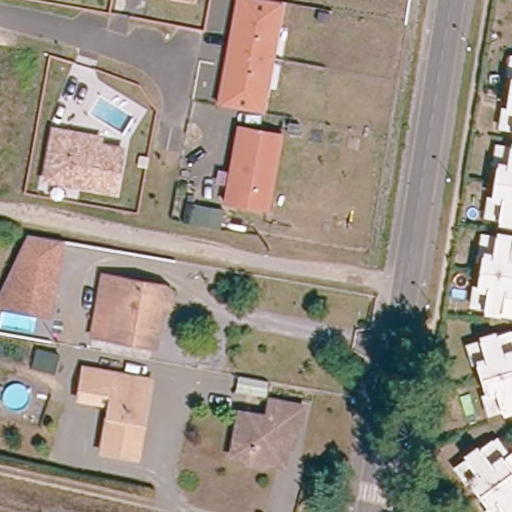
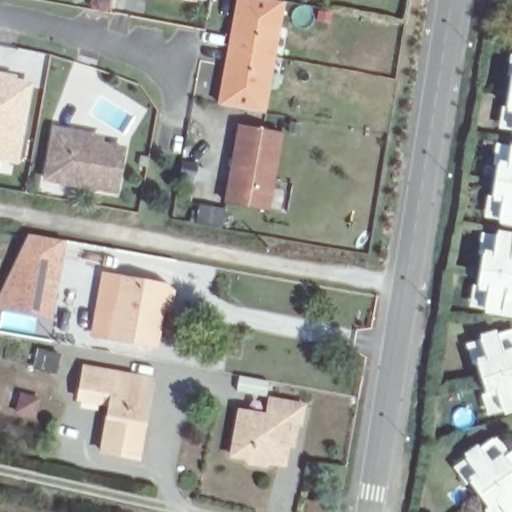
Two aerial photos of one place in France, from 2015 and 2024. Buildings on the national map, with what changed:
unchanged [(258,114),(215,106),(235,0),(262,0),(267,1),(278,3),(258,114)]
new [(39,85),(33,84),(34,79),(0,71),(0,45),(45,54),(39,85)]
unchanged [(507,76),(510,55),(512,55),(512,77),(507,76)]
new [(33,84),(19,165),(0,161),(0,71),(34,79),(33,84)]
unchanged [(502,107),(508,108),(512,80),(512,130),(499,128),(502,107)]
unchanged [(267,206),(224,198),(239,122),(281,130),(267,206)]
unchanged [(51,128),(104,137),(103,144),(124,147),(115,193),(43,179),(51,128)]
unchanged [(488,196),(493,197),(498,166),(493,165),(496,144),(512,147),(512,221),(499,220),(484,217),(488,196)]
unchanged [(220,225),(195,220),(199,201),(224,206),(220,225)]
unchanged [(474,285),(479,286),(484,255),(479,255),(482,233),(497,236),(512,238),(512,313),(486,309),(470,306),(474,285)]
unchanged [(0,308),(0,297),(29,237),(63,243),(53,301),(50,318),(25,313),(0,308)]
unchanged [(89,333),(99,275),(160,286),(167,291),(164,308),(156,310),(149,345),(89,333)]
unchanged [(482,395),(488,394),(478,364),(473,366),(467,345),(482,340),(512,331),(512,408),(504,411),(489,416),(482,395)]
unchanged [(141,391),(144,392),(131,458),(96,451),(104,403),(74,397),(79,368),(95,371),(144,379),(141,391)]
unchanged [(243,461),(240,456),(225,453),(226,449),(234,409),(260,414),(264,397),(297,403),(294,421),(285,420),(278,462),(278,463),(263,460),(259,464),(243,461)]
unchanged [(490,508),(472,483),(468,486),(455,469),(468,459),(494,440),(507,457),(512,453),(512,512),(486,512),(486,511),(490,508)]

